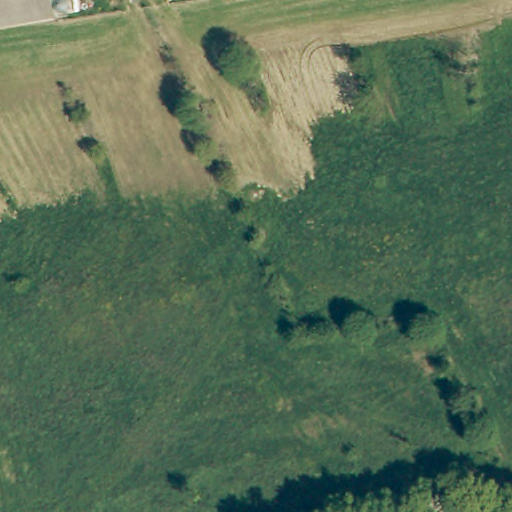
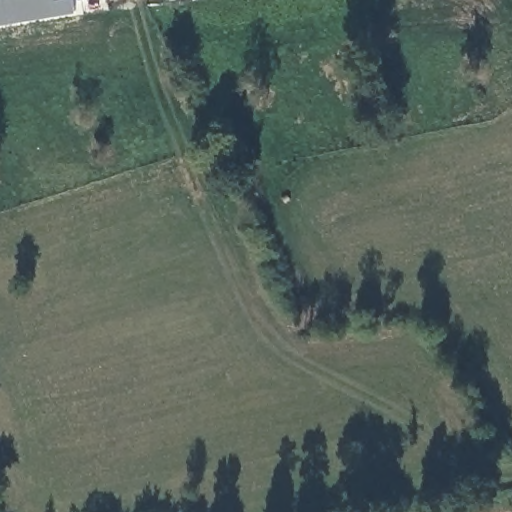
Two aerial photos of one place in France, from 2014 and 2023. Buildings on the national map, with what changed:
unchanged [(61,12),(0,22),(0,0),(59,0),(61,12)]

